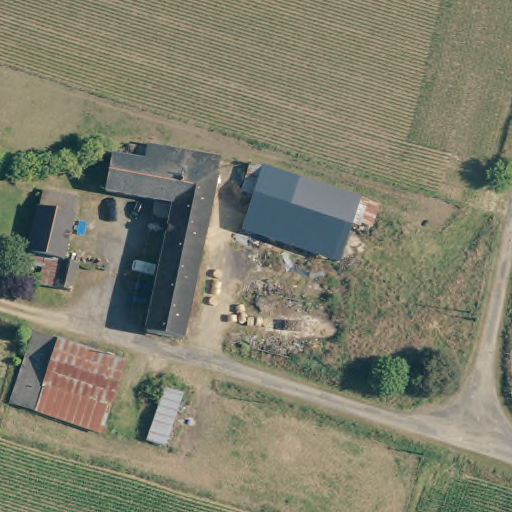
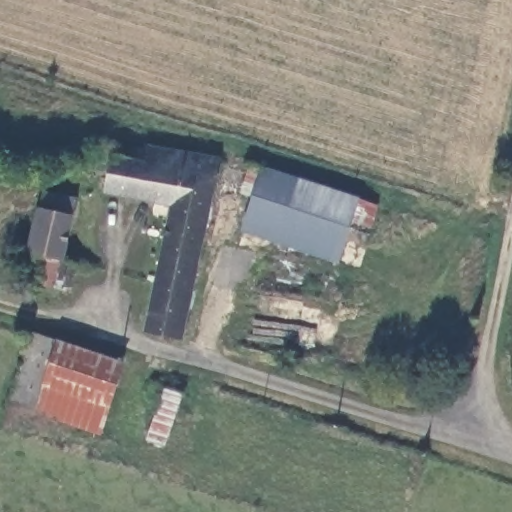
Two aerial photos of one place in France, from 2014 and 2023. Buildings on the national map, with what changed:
unchanged [(157,328),(180,206),(170,201),(115,188),(122,150),(156,157),(160,138),(181,142),(227,152),(223,171),(191,337),(156,330),(157,328)]
unchanged [(371,237),(356,231),(342,265),(273,237),(249,227),(262,196),(249,191),(254,177),(261,160),(275,166),(312,181),(367,204),(383,210),(371,237)]
unchanged [(37,285),(42,254),(24,249),(34,207),(37,192),(72,201),(68,217),(59,258),(76,262),(68,293),(50,287),(37,285)]
unchanged [(75,344),(57,388),(47,415),(22,404),(47,334),(75,342),(75,344)]
unchanged [(134,367),(118,413),(116,412),(57,388),(75,344),(134,367)]
unchanged [(195,382),(163,451),(142,442),(178,367),(196,375),(195,382)]
unchanged [(116,412),(107,436),(47,415),(57,388),(116,412)]

